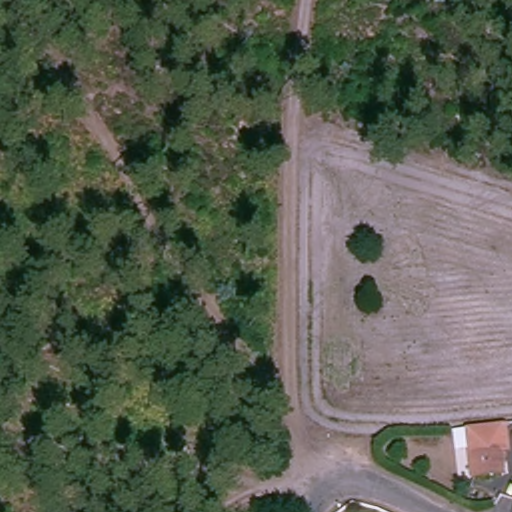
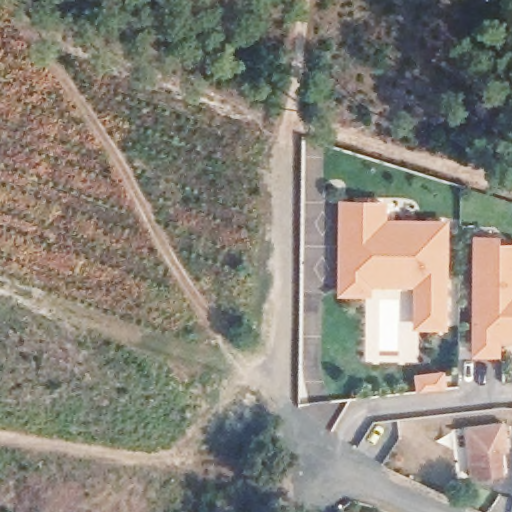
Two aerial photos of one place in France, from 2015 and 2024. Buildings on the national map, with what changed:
new [(387,201),(387,219),(449,220),(448,330),(412,330),(412,288),(372,287),(372,297),(337,296),(338,200),(387,201)]
new [(498,235),(498,242),(512,243),(512,342),(501,341),(500,357),(470,357),(472,235),(498,235)]
unchanged [(470,455),(459,457),(456,427),(507,422),(511,447),(505,448),(509,475),(474,477),(470,455)]

